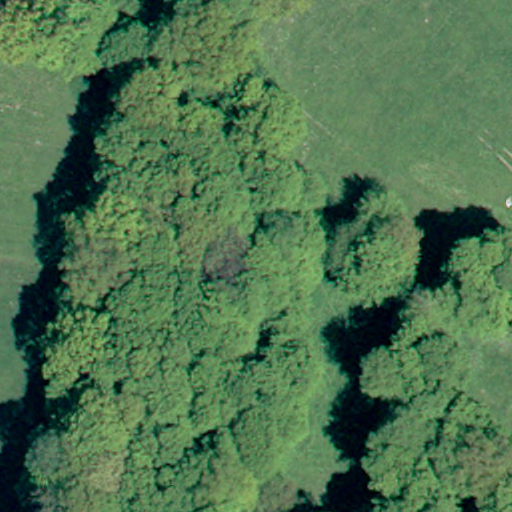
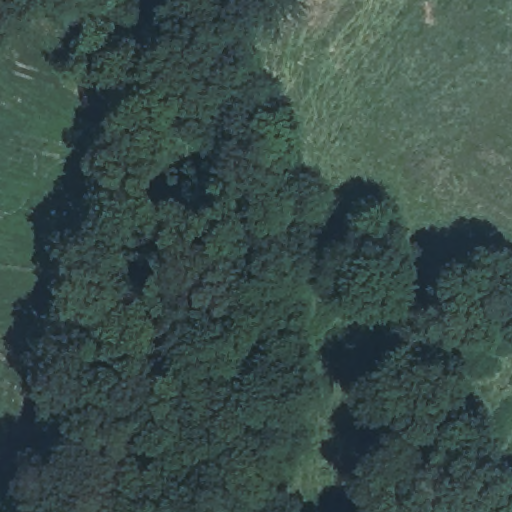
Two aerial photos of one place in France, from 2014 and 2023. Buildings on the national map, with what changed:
[]

